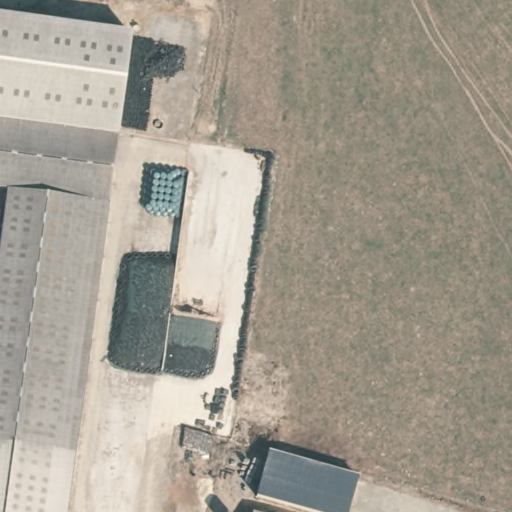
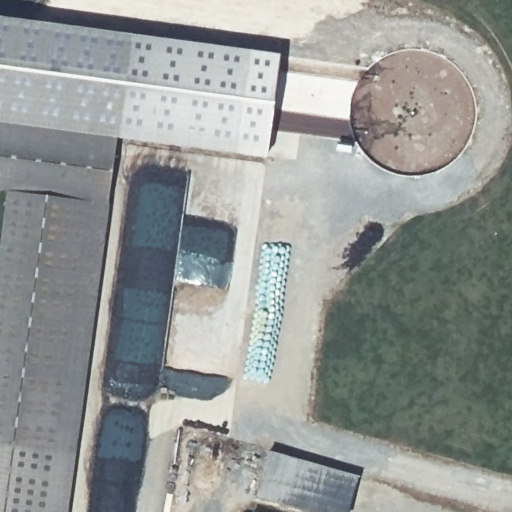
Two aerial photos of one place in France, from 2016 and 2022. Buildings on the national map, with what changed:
new [(136,42),(0,18),(0,16),(137,33),(251,49),(237,152),(120,136),(136,42)]
unchanged [(119,142),(0,121),(0,18),(136,42),(119,142)]
unchanged [(0,121),(119,142),(109,204),(15,188),(0,186),(0,121)]
unchanged [(109,204),(69,462),(0,444),(0,280),(15,188),(109,204)]
unchanged [(61,512),(17,512),(0,509),(0,444),(69,462),(61,512)]
unchanged [(270,447),(358,474),(349,512),(304,512),(256,498),(270,447)]
unchanged [(0,509),(17,512),(0,512),(0,509)]

